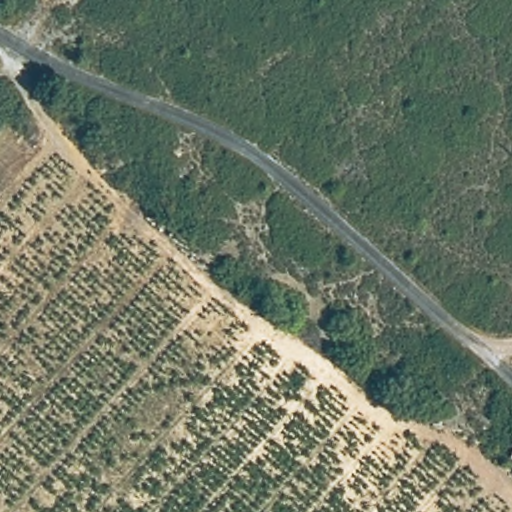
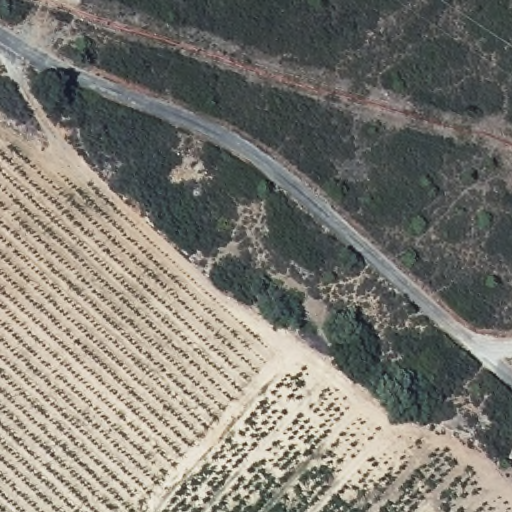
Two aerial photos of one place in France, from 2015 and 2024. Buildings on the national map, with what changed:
unchanged [(506,452),(512,443),(512,457),(506,452)]

